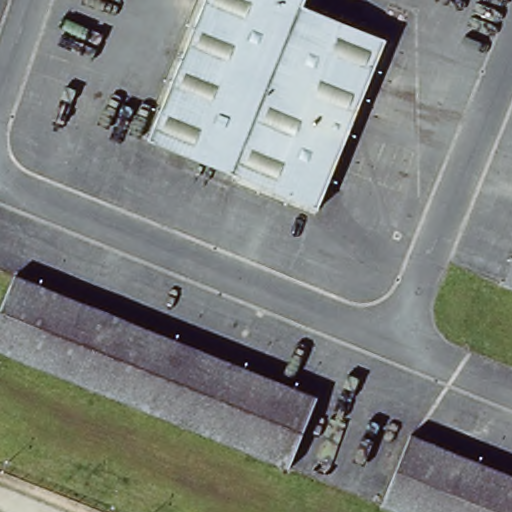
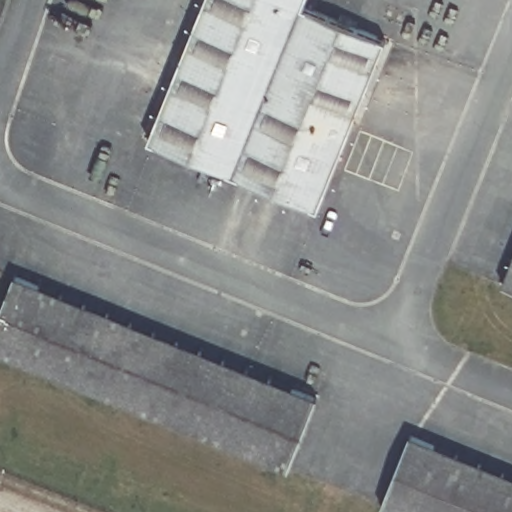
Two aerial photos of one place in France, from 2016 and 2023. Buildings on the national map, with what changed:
unchanged [(304,8),(386,42),(318,211),(150,146),(207,0),(307,0),(304,8)]
unchanged [(512,258),(512,291),(501,287),(512,258)]
unchanged [(289,472),(0,358),(0,315),(15,276),(319,398),(289,472)]
unchanged [(512,512),(387,512),(382,510),(413,435),(512,475),(512,512)]

